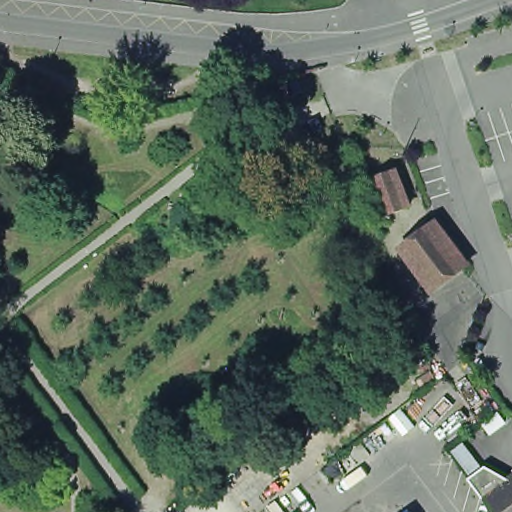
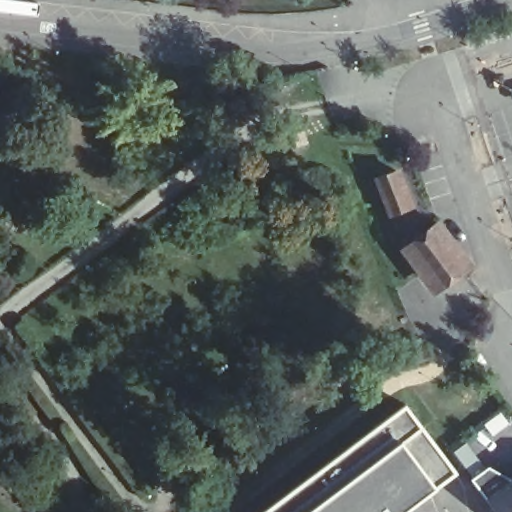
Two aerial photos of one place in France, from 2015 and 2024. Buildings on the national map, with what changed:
unchanged [(376,177),(396,170),(411,207),(390,216),(376,177)]
unchanged [(473,266),(446,286),(418,248),(444,227),(447,227),(474,265),(473,266)]
new [(434,487),(403,512),(262,512),(406,403),(456,472),(434,487)]
unchanged [(466,445),(481,466),(473,472),(457,452),(466,445)]
unchanged [(484,497),(471,478),(483,469),(505,482),(512,476),(512,512),(496,512),(484,497)]

